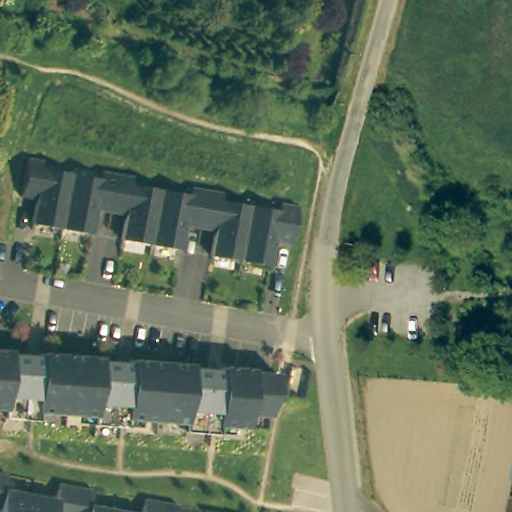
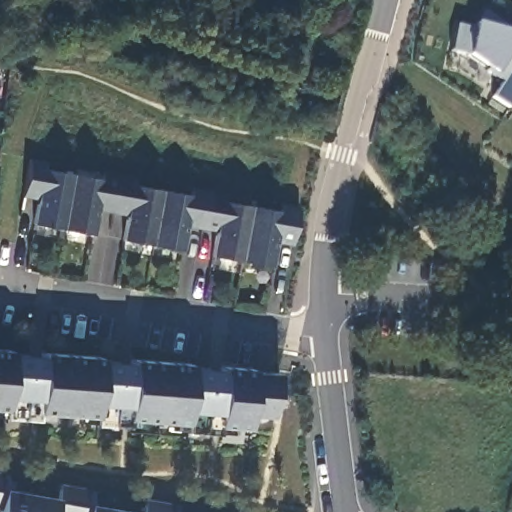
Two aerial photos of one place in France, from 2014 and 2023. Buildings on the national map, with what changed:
new [(512,28),(512,102),(506,108),(490,98),(501,82),(494,74),(465,56),(466,53),(448,52),(455,24),(473,27),(473,22),(480,24),(483,11),(512,28)]
unchanged [(32,223),(36,199),(21,196),(27,158),(44,161),(42,168),(70,173),(62,224),(61,228),(32,223)]
unchanged [(61,228),(62,224),(70,173),(99,179),(100,171),(116,174),(110,212),(94,209),(89,234),(61,228)]
unchanged [(156,204),(150,244),(119,239),(124,214),(110,212),(116,174),(131,177),(130,184),(159,189),(156,204)]
unchanged [(197,227),(183,225),(179,250),(150,244),(156,204),(159,189),(188,195),(189,187),(204,190),(197,227)]
unchanged [(246,207),(237,260),(208,255),(212,230),(197,227),(204,190),(221,193),(220,200),(247,205),(246,207)]
unchanged [(237,260),(246,207),(247,205),(275,210),(276,202),(293,206),(286,244),(270,241),(266,265),(237,260)]
unchanged [(184,432),(184,423),(126,418),(125,427),(119,427),(92,425),(94,417),(36,412),(35,421),(29,420),(3,418),(4,410),(0,410),(0,350),(10,351),(10,355),(40,357),(40,353),(100,358),(100,362),(130,365),(130,361),(190,366),(190,370),(220,372),(220,369),(251,372),(251,374),(274,376),(267,416),(247,415),(246,428),(216,426),(215,435),(209,433),(184,432)]
unchanged [(5,505),(0,504),(0,468),(4,468),(12,470),(10,485),(36,490),(33,512),(4,512),(5,505)]
unchanged [(36,490),(61,495),(64,480),(81,483),(77,512),(33,512),(36,490)]
unchanged [(81,483),(97,486),(95,501),(121,506),(120,512),(77,512),(81,483)]
unchanged [(121,506),(146,511),(150,496),(166,499),(164,512),(120,512),(121,506)]
unchanged [(166,499),(183,502),(181,512),(164,512),(166,499)]

